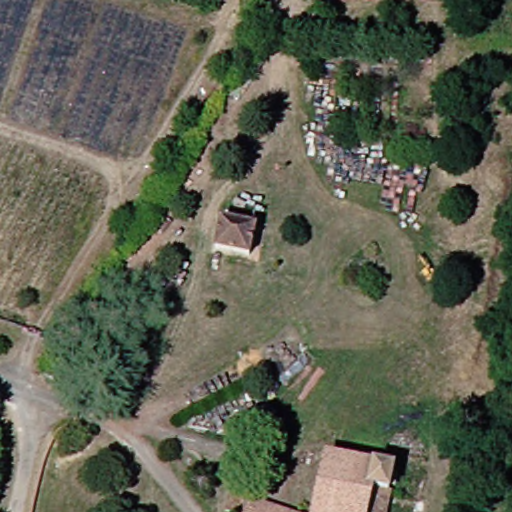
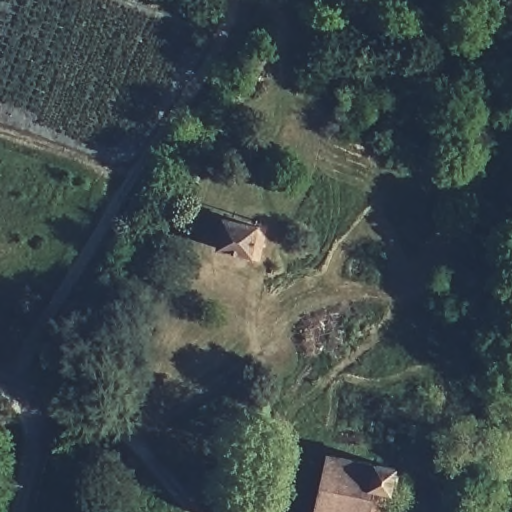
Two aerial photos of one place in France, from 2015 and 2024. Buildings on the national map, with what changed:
unchanged [(221,248),(226,223),(255,230),(251,255),(221,248)]
unchanged [(398,469),(394,492),(375,488),(370,512),(322,512),(334,455),(398,469)]
unchanged [(394,492),(390,512),(370,512),(375,488),(394,492)]
unchanged [(232,512),(235,498),(301,512),(232,512)]

